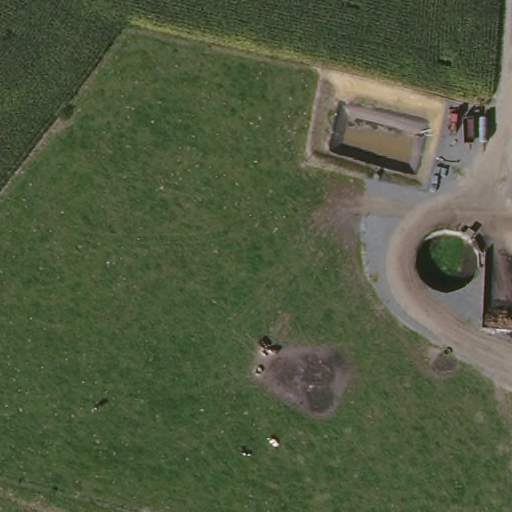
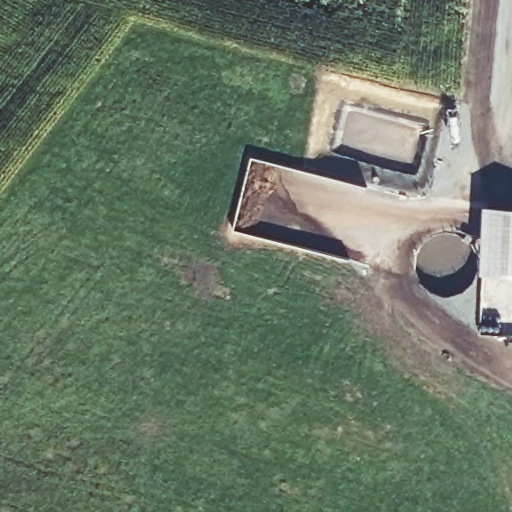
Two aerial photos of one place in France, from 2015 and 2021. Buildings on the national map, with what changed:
new [(482,271),(485,204),(512,205),(512,273),(482,271)]

